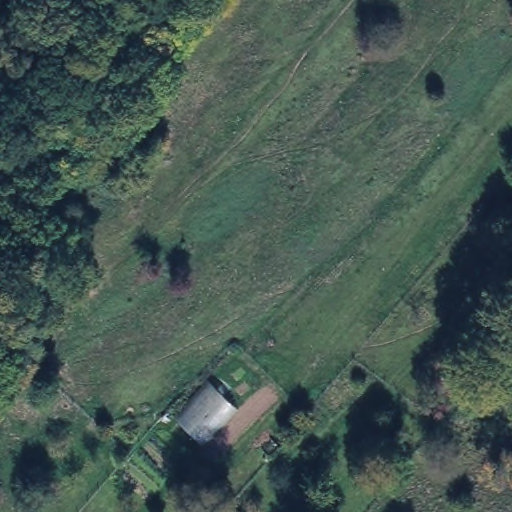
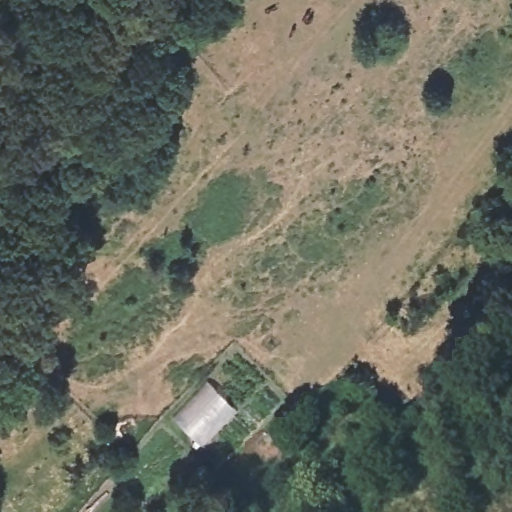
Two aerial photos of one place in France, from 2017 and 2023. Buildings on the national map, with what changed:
unchanged [(357,429),(372,443),(357,458),(340,443),(357,429)]

